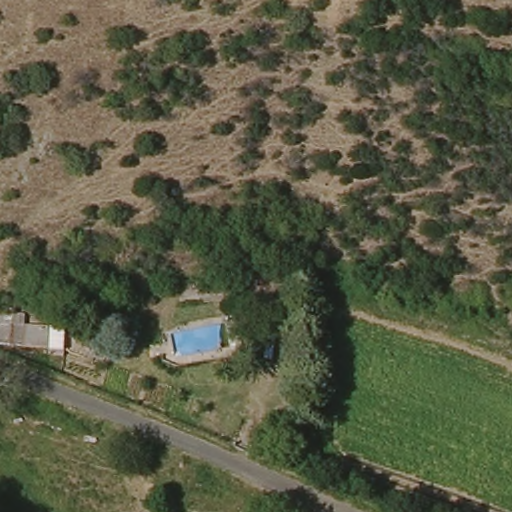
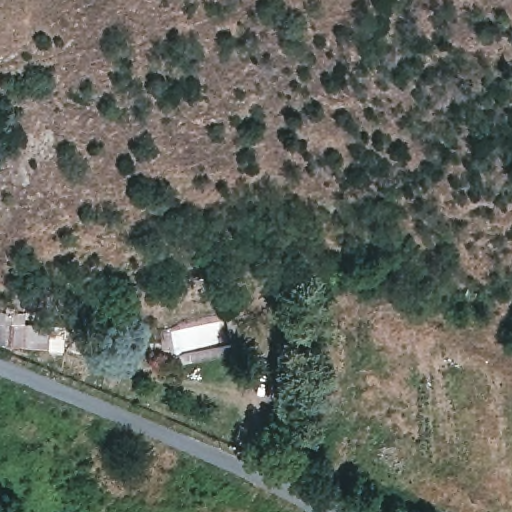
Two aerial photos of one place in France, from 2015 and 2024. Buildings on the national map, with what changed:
unchanged [(0,342),(0,322),(17,322),(37,322),(37,342),(18,342),(0,342)]

